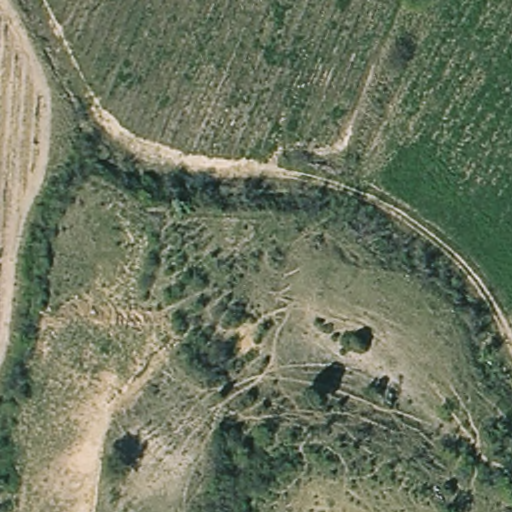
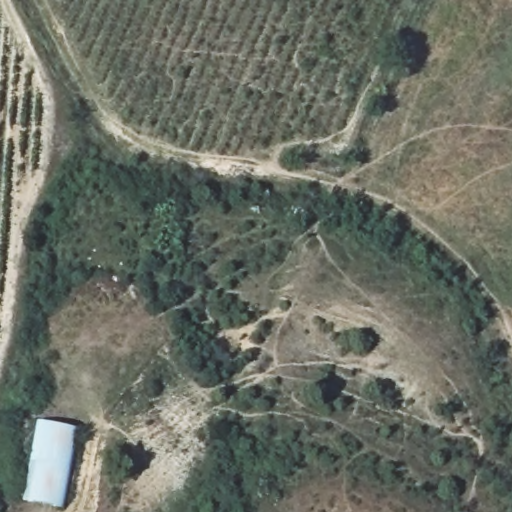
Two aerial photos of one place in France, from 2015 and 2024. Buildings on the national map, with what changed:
new [(38,423),(79,430),(65,508),(24,501),(38,423)]

